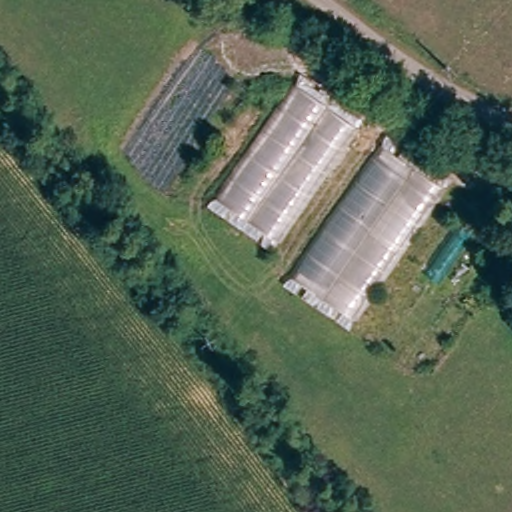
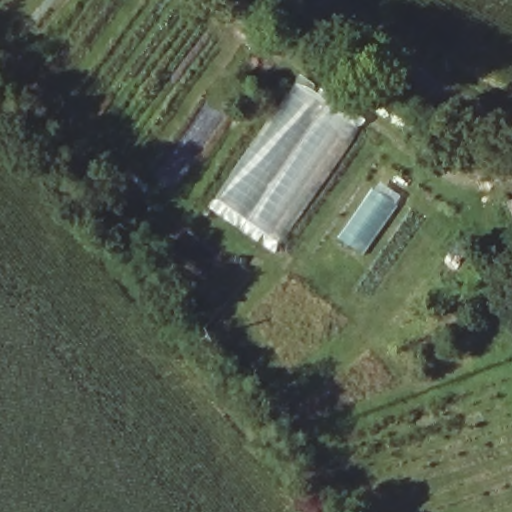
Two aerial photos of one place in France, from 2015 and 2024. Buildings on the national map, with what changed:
unchanged [(305,75),(366,119),(270,246),(209,204),(305,75)]
demolished [(385,143),(454,185),(347,326),(284,283),(385,143)]

